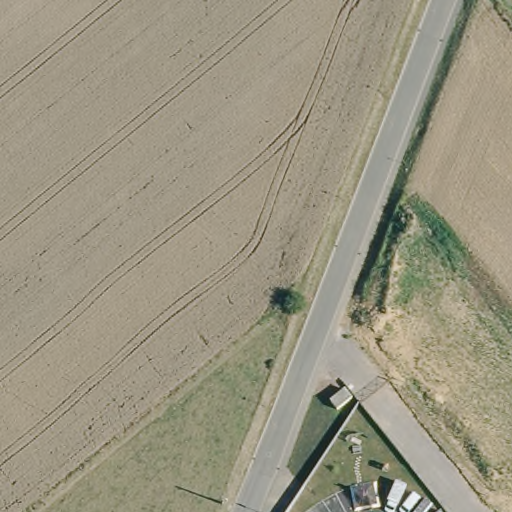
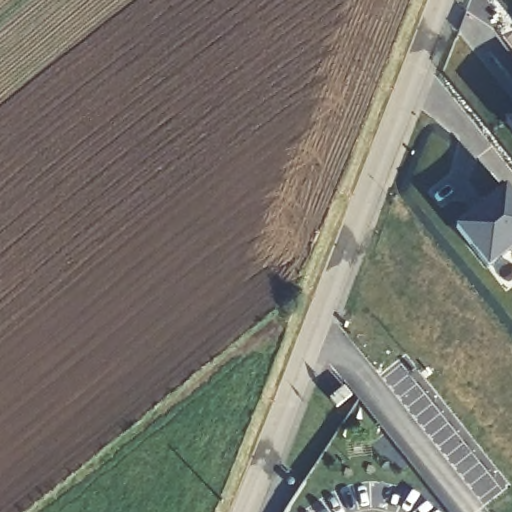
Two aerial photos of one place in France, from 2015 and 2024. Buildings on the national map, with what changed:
new [(512,116),(512,133),(503,122),(512,116)]
new [(500,192),(505,197),(509,194),(512,197),(512,254),(496,267),(488,266),(453,230),(500,192)]

